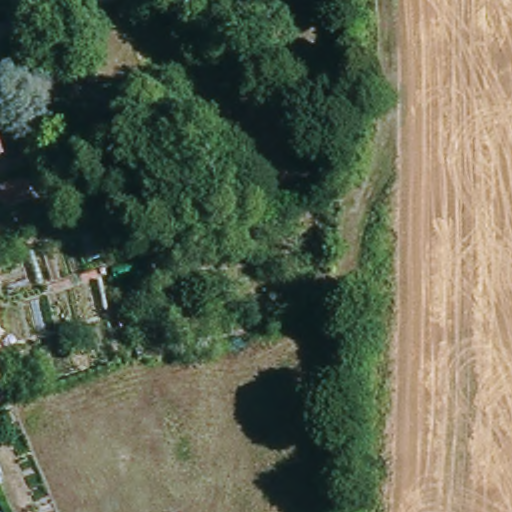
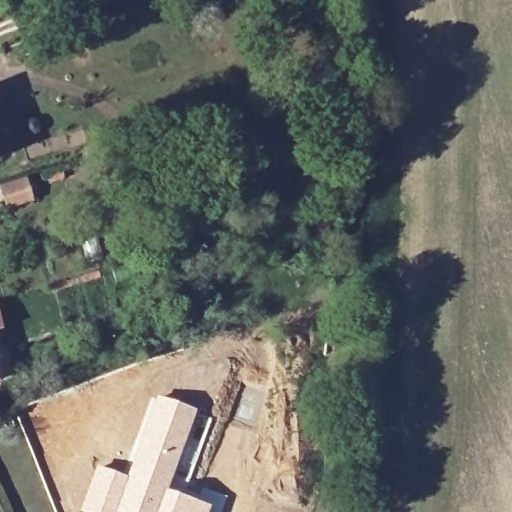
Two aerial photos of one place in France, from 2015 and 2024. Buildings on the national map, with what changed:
unchanged [(0,199),(0,178),(19,172),(24,192),(0,199)]
new [(227,496),(221,512),(79,512),(78,512),(95,465),(124,475),(131,449),(153,393),(197,411),(168,488),(184,494),(192,497),(197,487),(227,496)]
new [(197,411),(213,418),(184,494),(168,488),(197,411)]

